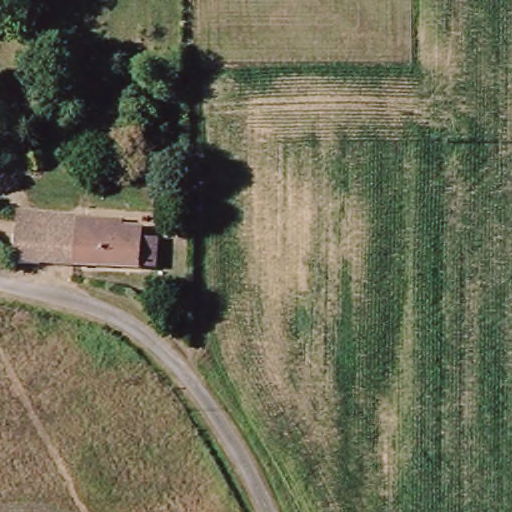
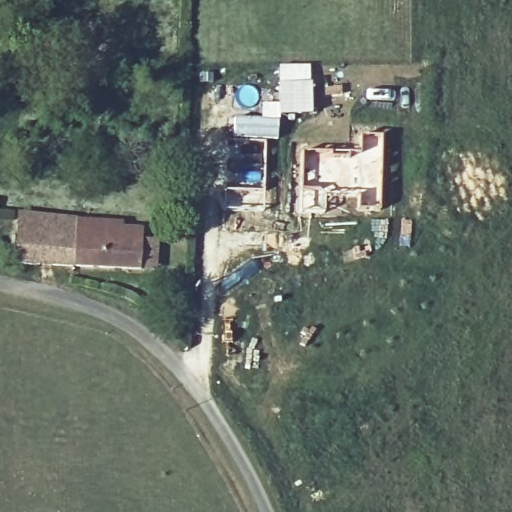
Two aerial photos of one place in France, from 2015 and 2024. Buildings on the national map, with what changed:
new [(278,65),(310,64),(313,115),(279,116),(278,103),(278,65)]
new [(232,117),(260,118),(261,103),(278,103),(279,116),(278,141),(232,140),(232,117)]
new [(300,150),(361,150),(361,135),(382,135),(382,190),(326,194),(327,210),(300,212),(300,150)]
unchanged [(150,274),(11,259),(17,211),(135,222),(134,227),(154,228),(150,274)]

